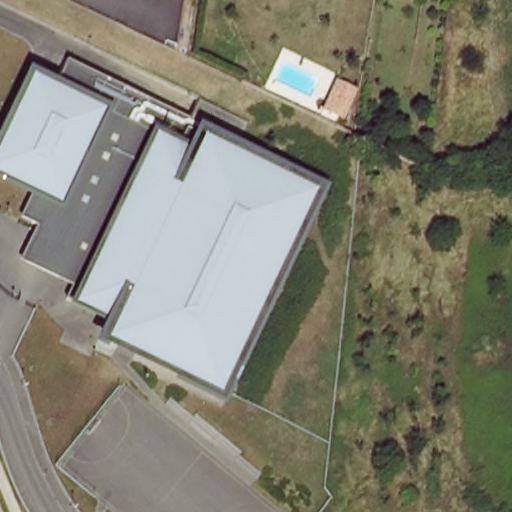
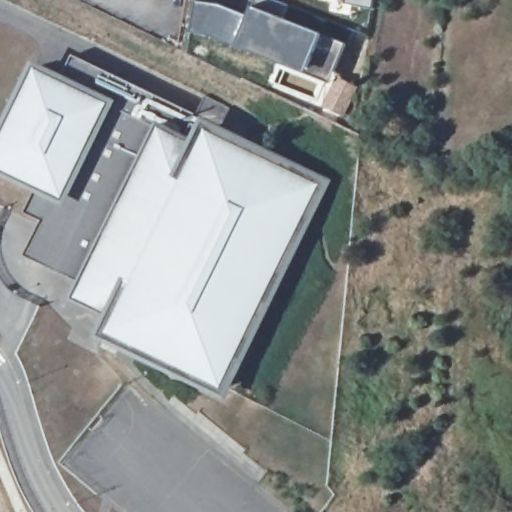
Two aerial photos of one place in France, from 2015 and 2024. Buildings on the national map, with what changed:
new [(196,0),(220,4),(246,14),(233,48),(190,35),(196,0)]
new [(246,14),(251,0),(277,0),(291,5),(286,19),(321,33),(303,77),(233,48),(246,14)]
new [(345,0),(372,0),(371,8),(344,3),(345,0)]
new [(345,117),(321,105),(329,86),(303,77),(321,33),(345,42),(333,74),(359,86),(345,117)]
unchanged [(246,168),(324,206),(284,289),(230,403),(227,409),(114,355),(122,338),(77,317),(85,301),(62,289),(61,288),(58,277),(46,281),(40,264),(43,263),(52,260),(47,247),(50,241),(34,233),(45,208),(0,187),(0,178),(42,92),(65,103),(77,76),(142,107),(200,135),(209,116),(259,140),(246,168)]

